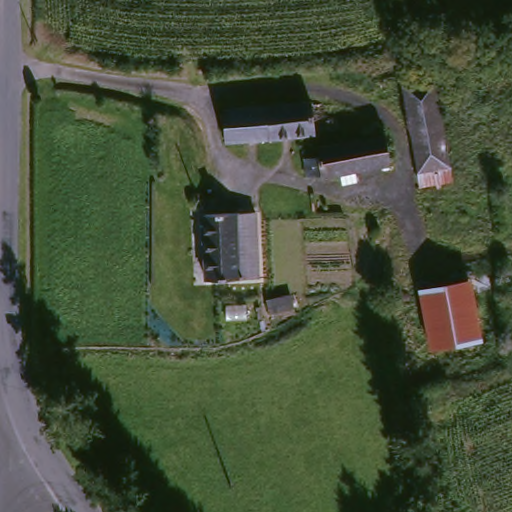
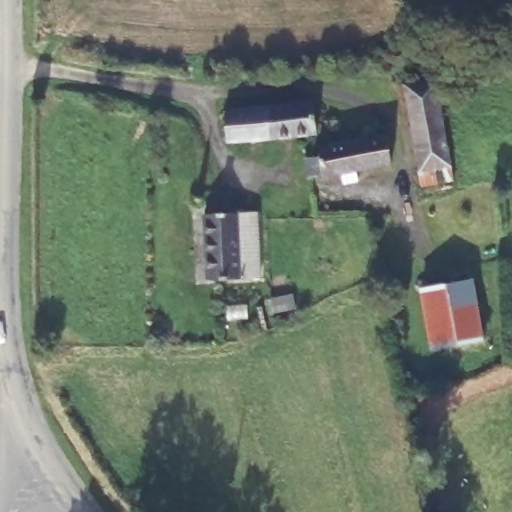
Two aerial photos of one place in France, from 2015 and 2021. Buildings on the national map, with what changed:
unchanged [(418,186),(418,170),(406,82),(438,78),(453,167),(454,184),(418,186)]
unchanged [(313,133),(236,149),(228,115),(306,101),(313,133)]
unchanged [(388,162),(299,179),(294,155),(317,150),(314,142),(381,130),(388,162)]
unchanged [(263,276),(221,277),(203,277),(203,257),(201,212),(261,210),(263,276)]
unchanged [(481,337),(429,347),(416,287),(469,276),(481,337)]

